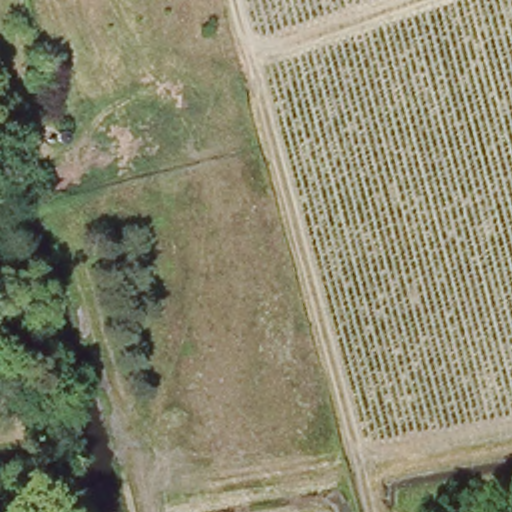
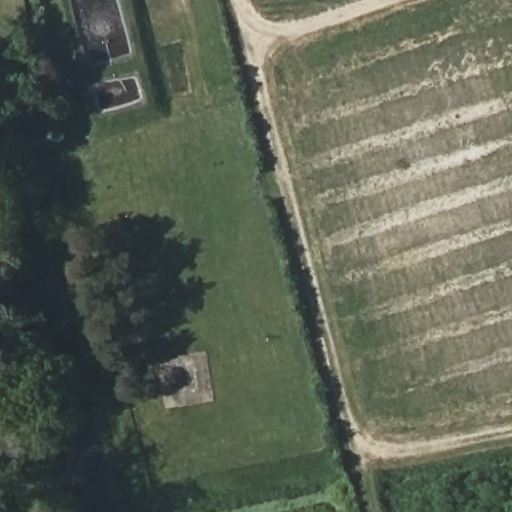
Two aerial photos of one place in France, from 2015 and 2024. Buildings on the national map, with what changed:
unchanged [(47,123),(49,122),(49,120),(52,117),(54,116),(55,116),(59,116),(60,116),(61,117),(62,117),(65,120),(66,122),(66,123),(66,126),(66,127),(65,129),(62,132),(61,132),(60,132),(59,133),(55,133),(53,132),(52,132),(49,129),(49,127),(47,123)]

